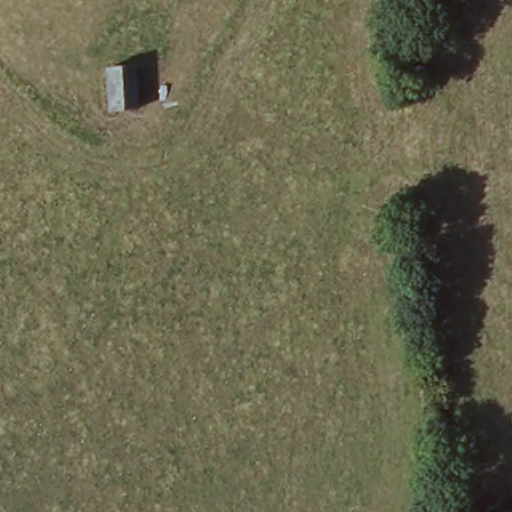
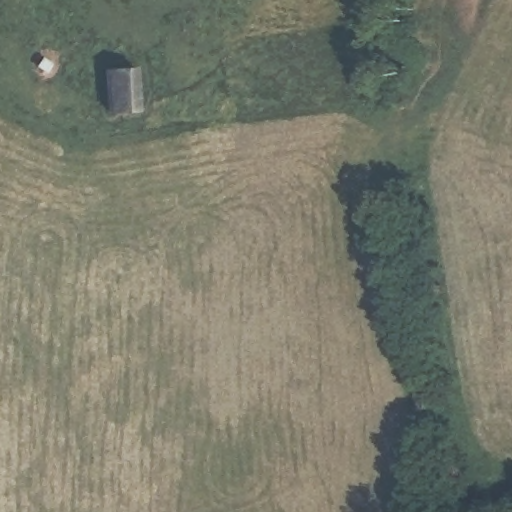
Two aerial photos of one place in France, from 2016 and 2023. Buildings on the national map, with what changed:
unchanged [(135,69),(143,111),(113,119),(104,76),(135,69)]

